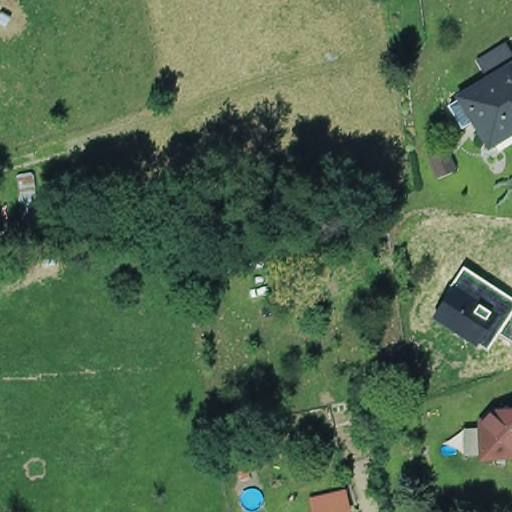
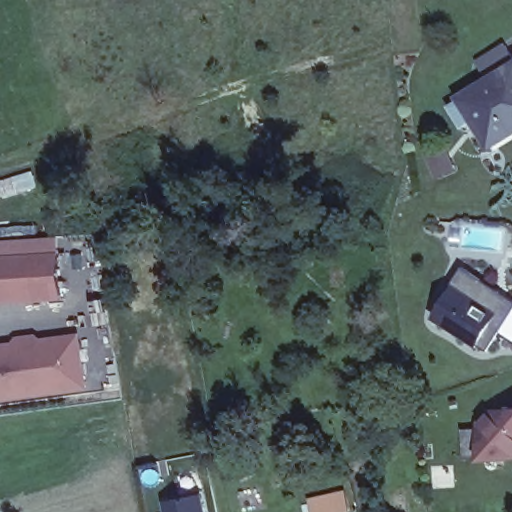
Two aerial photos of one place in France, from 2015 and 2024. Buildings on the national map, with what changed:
unchanged [(489,134),(472,105),(467,108),(463,102),(469,99),(462,88),(512,58),(512,121),(489,134)]
unchanged [(426,151),(442,145),(448,162),(432,167),(426,151)]
new [(0,241),(57,237),(62,299),(0,303),(0,241)]
unchanged [(499,335),(488,351),(434,316),(449,295),(447,293),(464,267),(484,280),(512,298),(512,343),(499,335)]
new [(93,392),(0,405),(0,342),(83,331),(93,392)]
unchanged [(477,422),(491,408),(512,405),(512,456),(479,457),(477,422)]
new [(165,512),(162,497),(203,490),(207,512),(165,512)]
unchanged [(344,496),(348,512),(312,512),(309,501),(344,496)]

